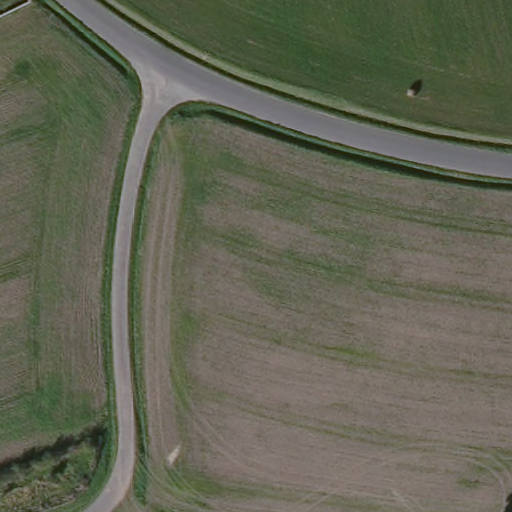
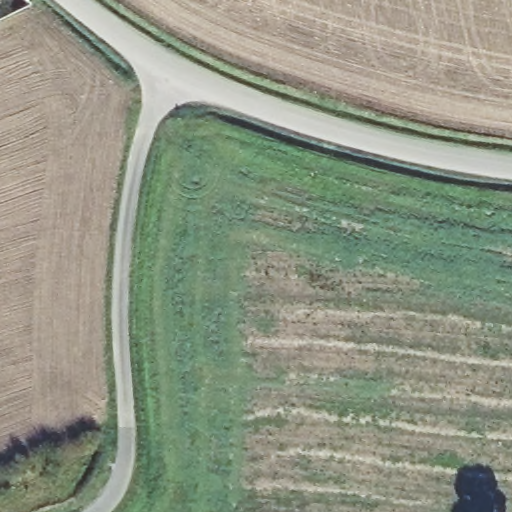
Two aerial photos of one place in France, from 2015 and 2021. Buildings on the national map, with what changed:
[]

